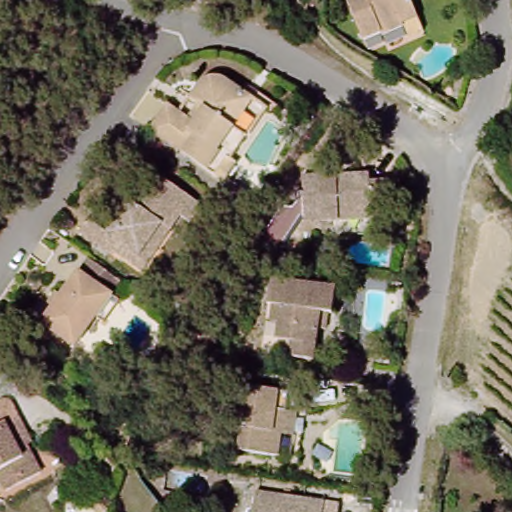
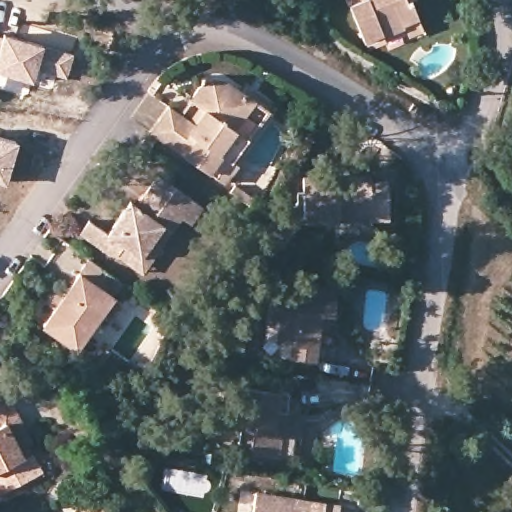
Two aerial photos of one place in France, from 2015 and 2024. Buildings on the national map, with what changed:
unchanged [(399,26),(361,41),(345,4),(349,2),(348,0),(406,0),(413,17),(418,31),(404,36),(399,26)]
new [(66,78),(35,69),(31,79),(0,69),(0,51),(5,36),(74,56),(66,78)]
unchanged [(226,160),(211,177),(142,127),(159,104),(183,119),(193,104),(179,95),(190,77),(202,75),(215,77),(228,88),(235,81),(265,102),(260,109),(253,106),(236,132),(221,156),(226,160)]
new [(5,182),(0,181),(0,138),(16,142),(5,182)]
unchanged [(339,219),(304,220),(304,176),(371,173),(372,210),(372,217),(339,219)]
unchanged [(118,253),(107,252),(79,232),(88,218),(108,231),(129,201),(136,206),(146,192),(158,176),(186,194),(187,197),(200,206),(190,222),(180,216),(171,229),(143,270),(118,253)]
unchanged [(234,184),(251,196),(247,201),(230,191),(234,184)]
unchanged [(101,330),(91,324),(71,352),(37,329),(84,262),(117,285),(107,300),(116,306),(101,330)]
unchanged [(335,290),(332,316),(320,315),(313,361),(275,357),(278,325),(272,324),(274,307),(270,306),(272,281),(335,290)]
unchanged [(290,437),(279,436),(278,438),(275,437),(272,459),(236,455),(238,432),(230,431),(236,390),(283,397),(281,414),(293,416),(290,437)]
unchanged [(0,476),(0,401),(3,400),(9,402),(20,421),(31,442),(26,445),(39,471),(8,487),(0,476)]
unchanged [(250,492),(334,506),(333,512),(248,512),(250,492)]
unchanged [(101,499),(109,510),(105,512),(94,512),(90,507),(101,499)]

